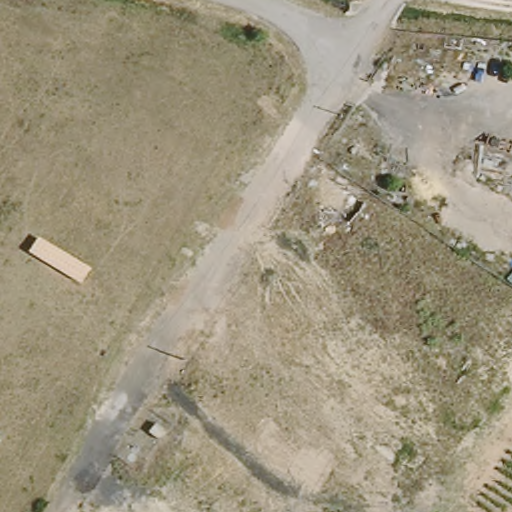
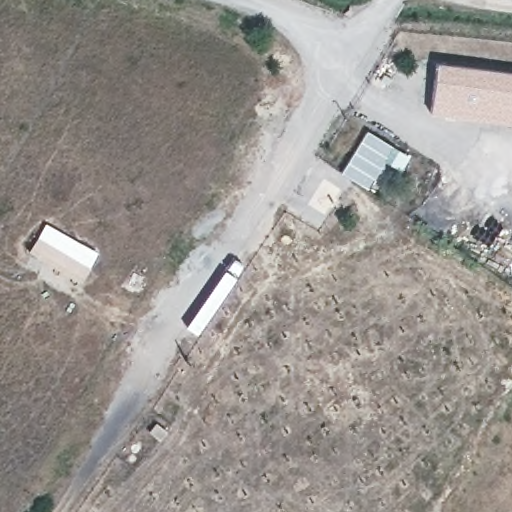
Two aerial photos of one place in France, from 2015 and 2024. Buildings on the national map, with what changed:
new [(436,62),(512,72),(512,124),(430,115),(436,62)]
new [(393,147),(366,190),(341,174),(368,131),(393,147)]
unchanged [(93,269),(82,285),(27,252),(38,236),(93,269)]
unchanged [(154,446),(137,428),(146,414),(169,431),(154,446)]

